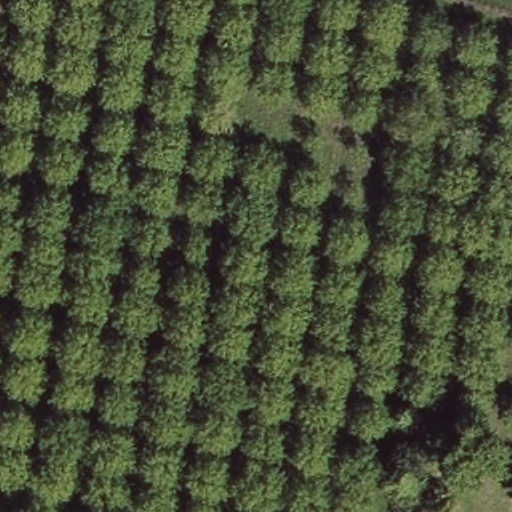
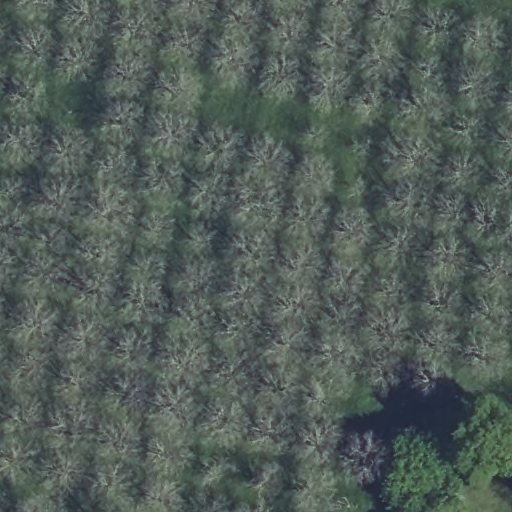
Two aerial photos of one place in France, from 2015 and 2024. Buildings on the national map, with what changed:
[]

